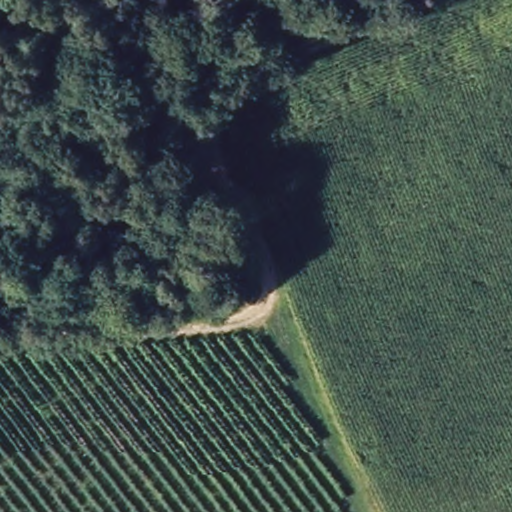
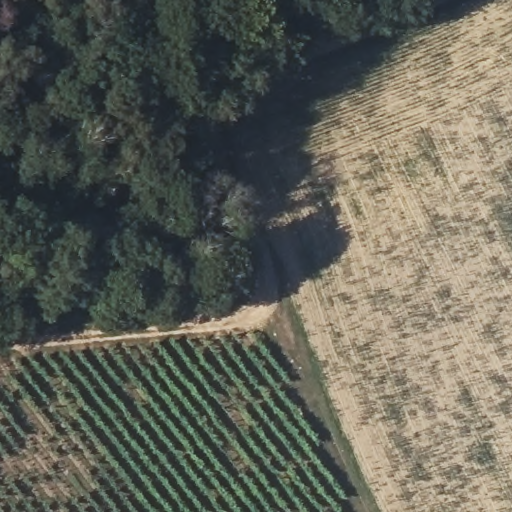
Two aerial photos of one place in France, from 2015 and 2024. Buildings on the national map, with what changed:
unchanged [(239,287),(229,296),(213,268),(227,261),(239,287)]

